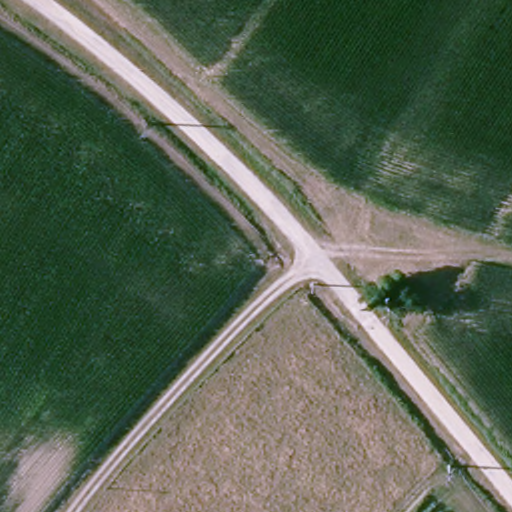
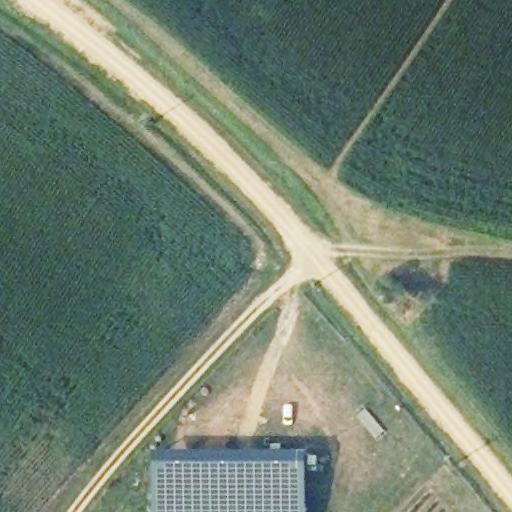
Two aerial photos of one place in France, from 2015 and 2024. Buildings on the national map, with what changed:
new [(152,454),(305,454),(305,512),(153,512),(152,454)]

